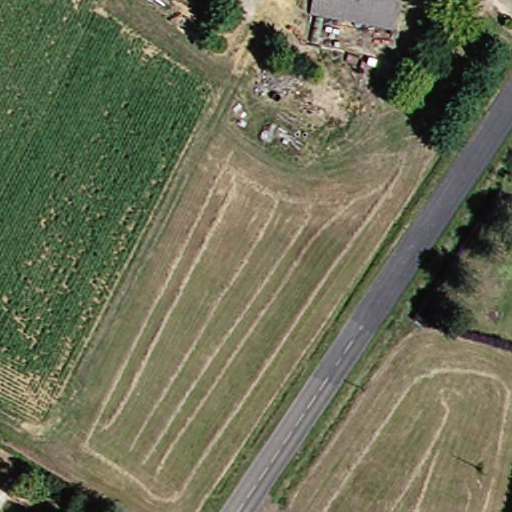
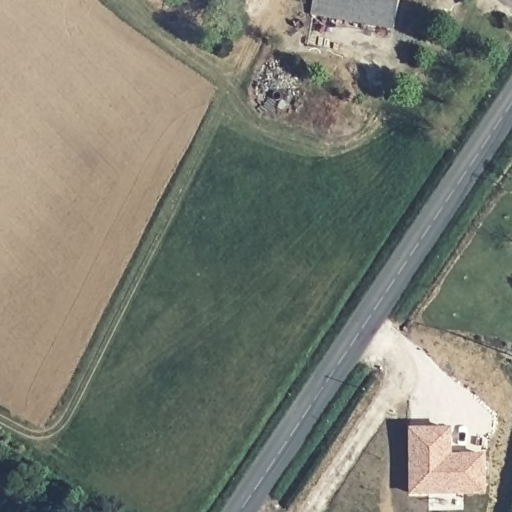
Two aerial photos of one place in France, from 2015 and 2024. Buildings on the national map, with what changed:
unchanged [(392,29),(309,17),(312,0),(395,0),(392,29)]
new [(452,454),(488,453),(487,495),(410,496),(409,428),(452,428),(452,454)]

